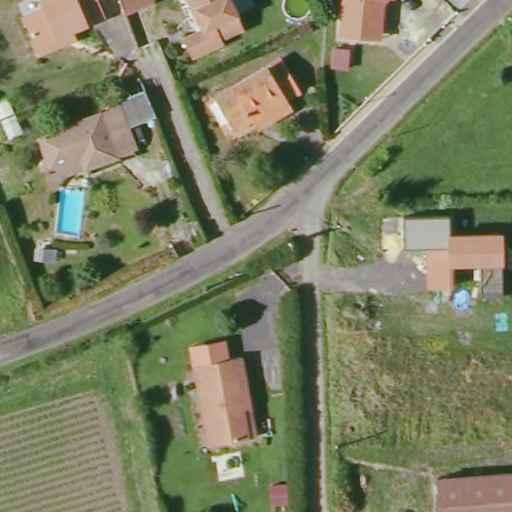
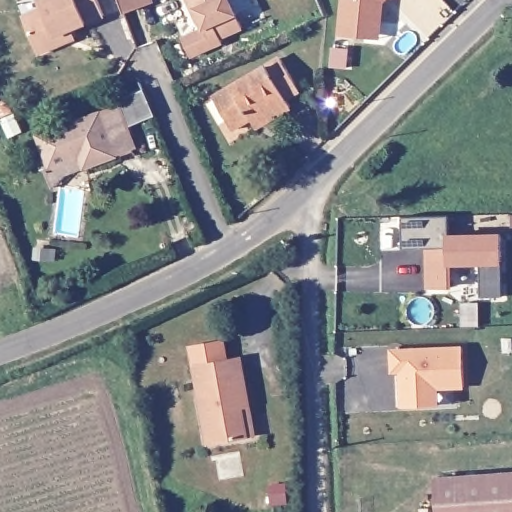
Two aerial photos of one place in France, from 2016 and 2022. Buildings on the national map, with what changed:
unchanged [(67,47),(43,56),(28,19),(50,10),(46,2),(51,0),(103,0),(111,21),(82,33),(84,41),(67,47)]
unchanged [(123,0),(156,0),(128,11),(123,0)]
unchanged [(196,0),(232,0),(236,9),(205,23),(196,0)]
unchanged [(385,4),(382,40),(340,37),(342,0),(390,0),(385,4)]
unchanged [(236,9),(247,33),(225,43),(227,49),(197,59),(189,40),(209,32),(205,23),(236,9)]
unchanged [(284,60),(301,93),(288,101),(294,112),(267,129),(260,118),(237,133),(215,100),(284,60)]
unchanged [(163,120),(133,129),(143,152),(55,186),(43,157),(50,153),(41,137),(122,109),(121,104),(153,95),(163,120)]
unchanged [(450,216),(450,234),(504,234),(504,265),(504,296),(482,297),(481,266),(451,267),(451,288),(427,289),(427,249),(405,249),(404,217),(450,216)]
new [(391,349),(462,346),(464,389),(439,389),(441,407),(402,409),(400,373),(391,374),(391,349)]
unchanged [(256,441),(217,448),(203,368),(250,361),(260,411),(263,440),(256,441)]
unchanged [(441,512),(441,483),(512,478),(512,512),(441,512)]
unchanged [(287,485),(287,503),(271,503),(271,484),(287,485)]

